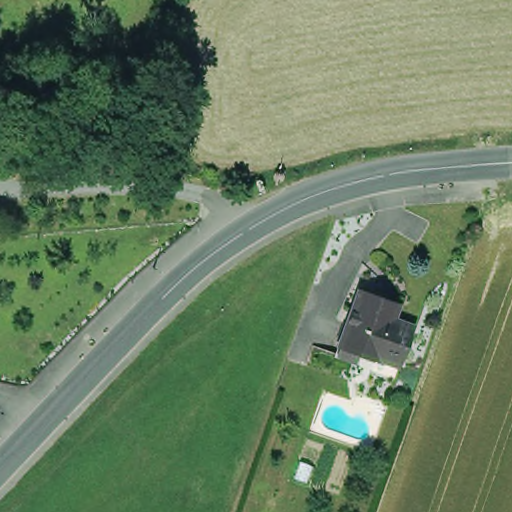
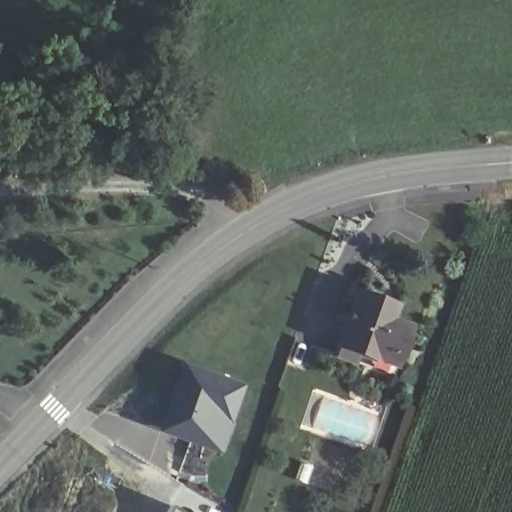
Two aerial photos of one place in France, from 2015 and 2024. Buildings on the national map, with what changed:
unchanged [(331,348),(335,338),(353,287),(371,292),(370,298),(385,303),(382,312),(400,317),(387,356),(353,345),(350,355),(331,348)]
new [(185,361),(246,384),(220,453),(161,431),(185,361)]
new [(171,507),(181,512),(168,512),(171,507)]

